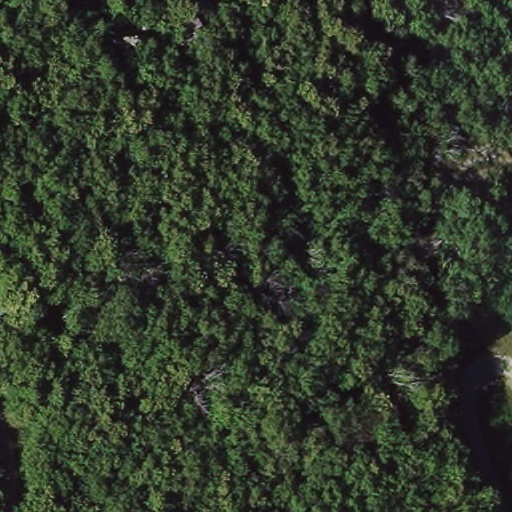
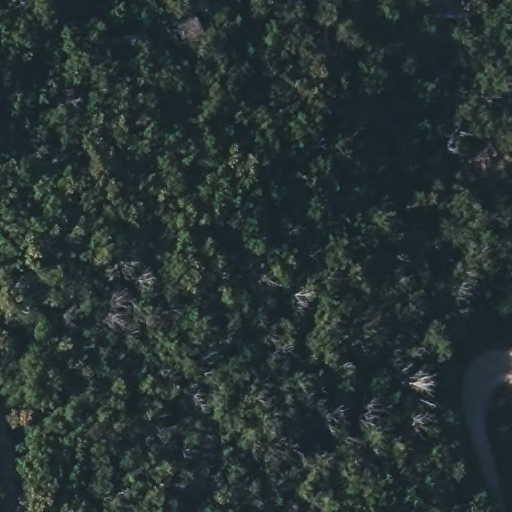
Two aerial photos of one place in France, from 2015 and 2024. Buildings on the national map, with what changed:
unchanged [(220,46),(195,44),(198,28),(222,32),(220,46)]

